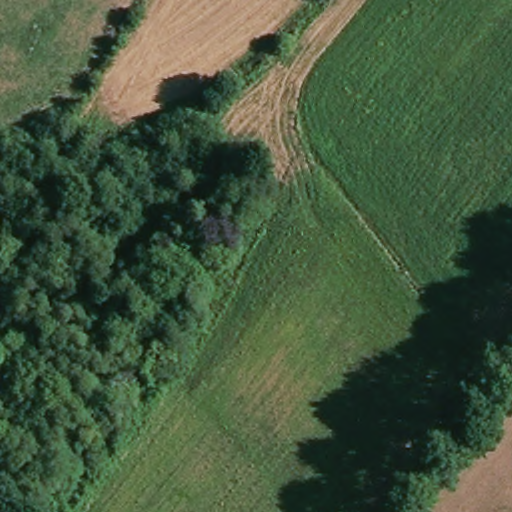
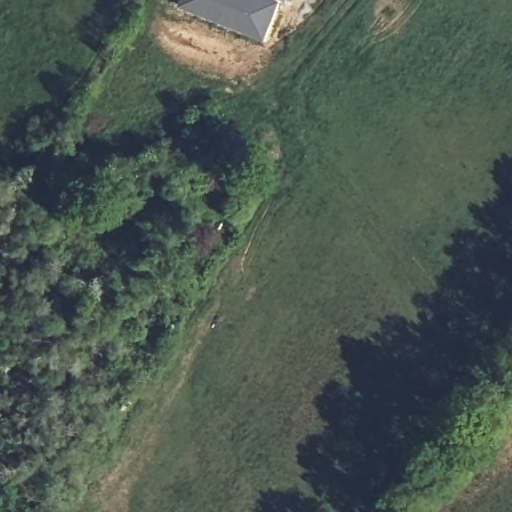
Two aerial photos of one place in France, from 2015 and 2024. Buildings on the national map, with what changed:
new [(278,0),(280,1),(263,44),(177,7),(180,0),(278,0)]

